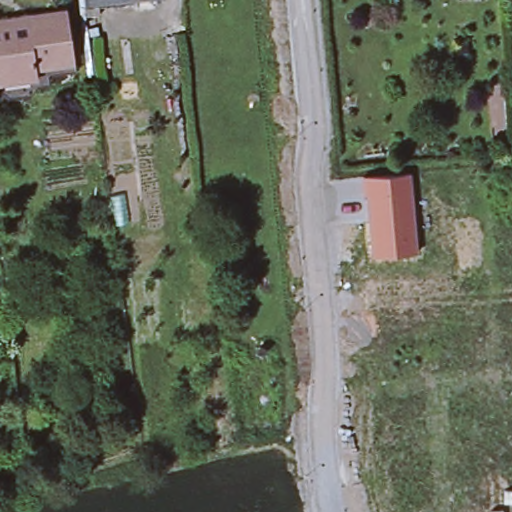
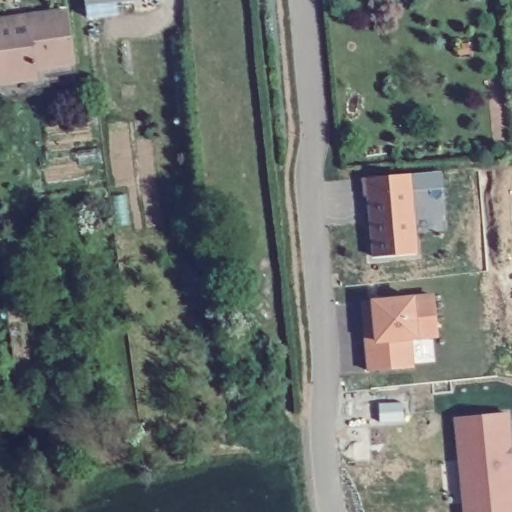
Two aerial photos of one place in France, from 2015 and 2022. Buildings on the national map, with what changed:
unchanged [(84,6),(83,0),(119,0),(120,2),(84,6)]
unchanged [(51,10),(63,9),(70,58),(58,60),(32,63),(34,75),(3,79),(0,80),(0,17),(25,14),(51,10)]
unchanged [(365,177),(411,174),(417,253),(371,256),(365,177)]
new [(436,333),(410,336),(412,365),(368,369),(366,338),(362,300),(372,299),(432,293),(436,333)]
new [(509,412),(512,442),(512,512),(462,512),(453,418),(509,412)]

